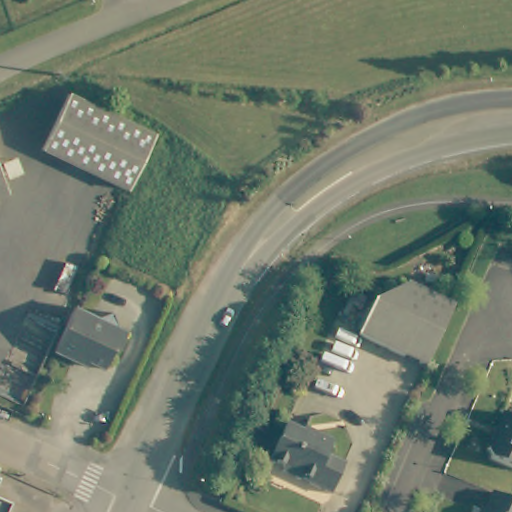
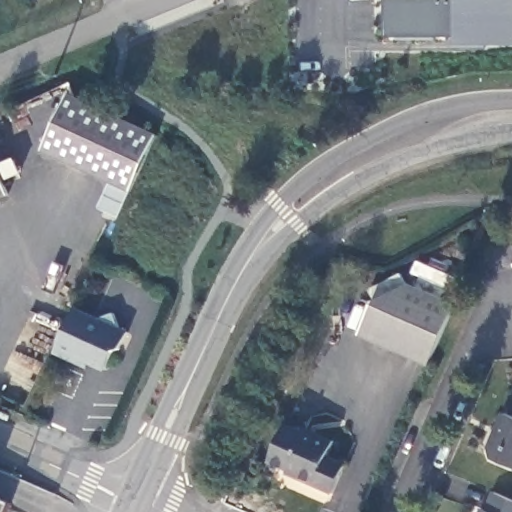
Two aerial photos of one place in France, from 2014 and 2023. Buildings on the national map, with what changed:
new [(457,46),(456,39),(385,37),(385,0),(512,0),(512,46),(457,46)]
unchanged [(155,134),(129,187),(40,144),(68,90),(155,134)]
unchanged [(0,194),(0,166),(10,190),(0,194)]
unchanged [(453,305),(426,364),(360,334),(373,302),(407,283),(453,305)]
unchanged [(116,328),(125,333),(117,350),(110,352),(102,370),(95,367),(80,358),(71,361),(69,353),(55,347),(74,308),(97,318),(111,314),(115,323),(116,328)]
unchanged [(512,414),(512,464),(490,455),(487,446),(503,410),(512,414)]
unchanged [(311,439),(314,435),(332,444),(327,457),(345,466),(330,496),(293,479),(295,475),(267,462),(284,427),(311,439)]
unchanged [(512,500),(512,512),(479,512),(481,507),(485,509),(492,492),(512,500)]
unchanged [(1,512),(0,512),(0,496),(6,499),(1,512)]

